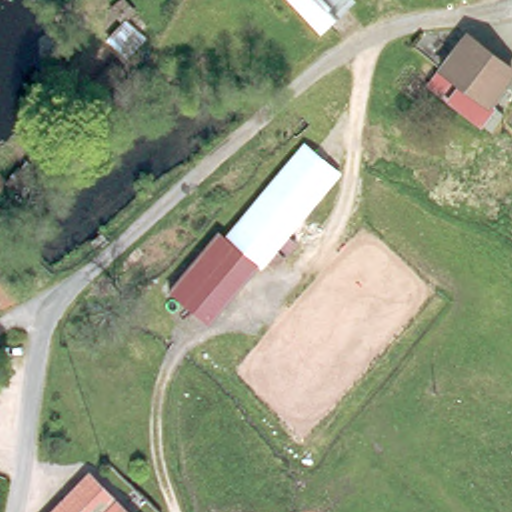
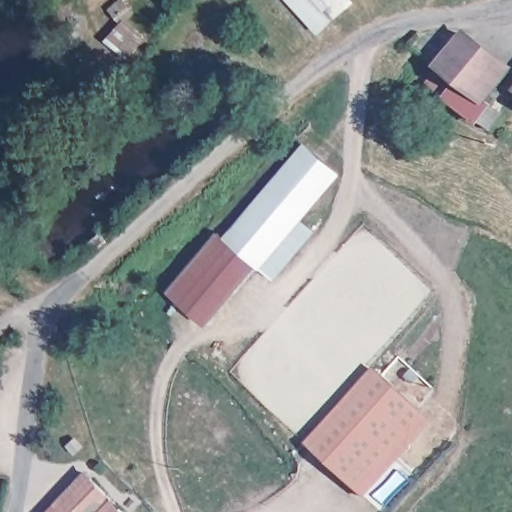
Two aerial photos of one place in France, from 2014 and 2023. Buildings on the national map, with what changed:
unchanged [(317,32),(287,0),(347,0),(349,1),(317,32)]
unchanged [(457,30),(502,65),(476,99),(482,103),(470,119),(420,80),(419,79),(457,30)]
unchanged [(300,142),(336,170),(258,265),(221,235),(300,142)]
unchanged [(258,265),(260,267),(211,328),(165,291),(215,230),(221,235),(258,265)]
new [(307,444),(375,368),(435,421),(367,498),(307,444)]
demolished [(124,473),(136,459),(148,469),(136,483),(124,473)]
unchanged [(86,467),(94,472),(110,488),(87,512),(42,512),(86,467)]
unchanged [(110,488),(134,512),(87,512),(110,488)]

